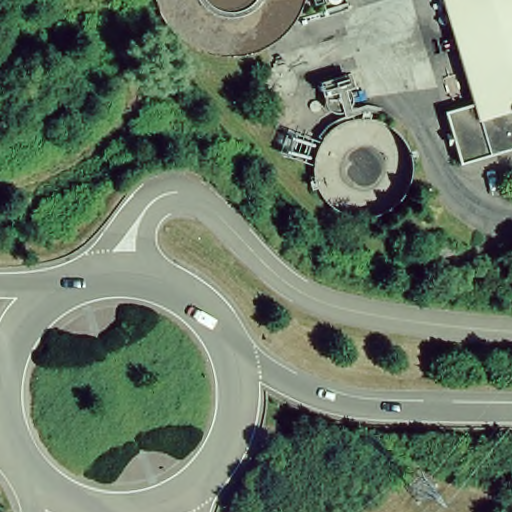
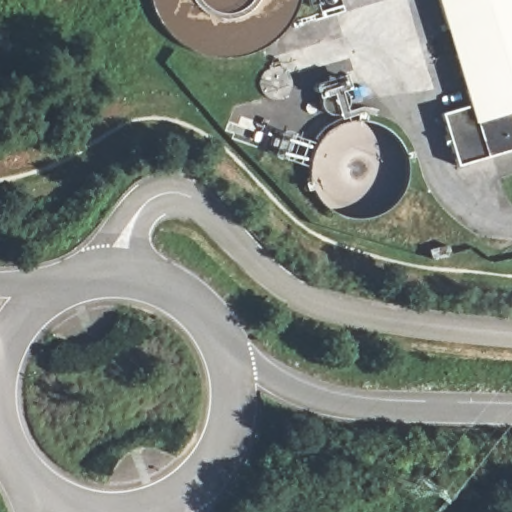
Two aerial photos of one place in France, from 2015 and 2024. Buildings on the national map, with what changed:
unchanged [(512,152),(455,167),(433,119),(463,113),(432,0),(512,0),(512,152)]

